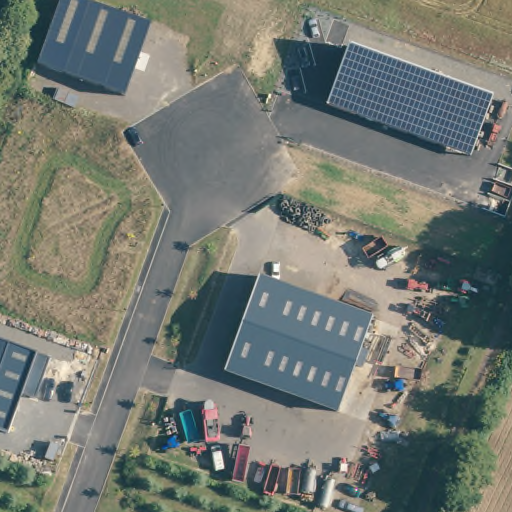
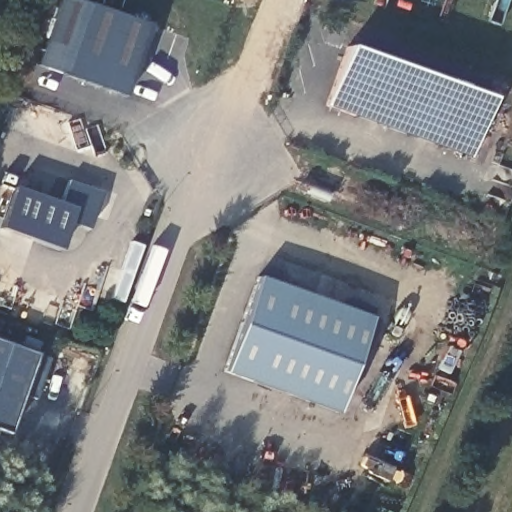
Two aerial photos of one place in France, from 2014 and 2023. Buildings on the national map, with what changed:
unchanged [(60,0),(77,0),(150,25),(124,96),(37,65),(60,0)]
unchanged [(492,99),(469,157),(327,107),(349,47),(492,99)]
new [(0,226),(15,187),(60,203),(69,183),(101,194),(89,229),(69,222),(59,249),(0,229),(0,226)]
unchanged [(372,318),(337,413),(224,371),(259,276),(372,318)]
unchanged [(36,397),(21,394),(8,432),(0,429),(0,342),(34,355),(49,359),(36,397)]

